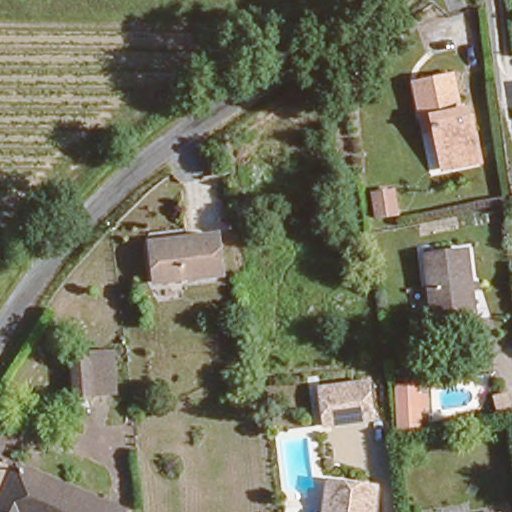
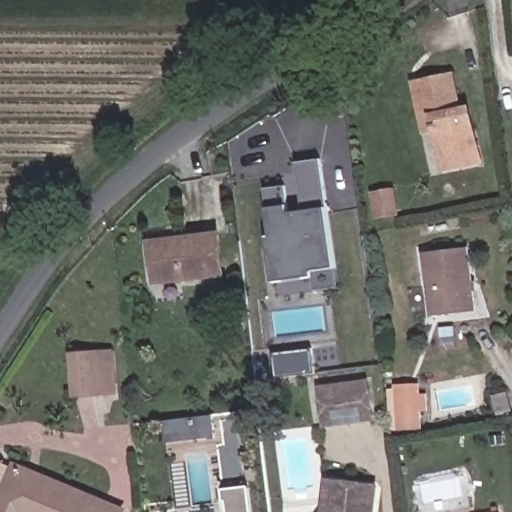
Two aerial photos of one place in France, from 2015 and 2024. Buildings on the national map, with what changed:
unchanged [(424,120),(413,74),(451,64),(457,105),(469,103),(477,153),(443,160),(439,130),(427,133),(424,120)]
new [(285,188),(288,205),(290,214),(304,212),(296,162),(318,159),(327,209),(336,266),(339,287),(316,290),(313,275),(272,281),(267,237),(272,236),(268,209),(265,188),(285,188)]
unchanged [(376,223),(373,198),(390,196),(393,221),(376,223)]
unchanged [(156,288),(148,248),(213,234),(223,274),(156,288)]
unchanged [(430,314),(422,248),(466,245),(472,307),(430,314)]
unchanged [(62,349),(110,341),(118,384),(67,394),(62,349)]
new [(307,351),(309,372),(274,376),(272,355),(307,351)]
unchanged [(395,435),(393,383),(423,380),(425,432),(395,435)]
unchanged [(323,429),(319,392),(366,385),(372,423),(323,429)]
unchanged [(0,512),(0,453),(22,461),(135,503),(130,512),(0,512)]
unchanged [(323,512),(324,482),(376,490),(373,512),(323,512)]
new [(247,486),(251,512),(223,512),(221,490),(247,486)]

